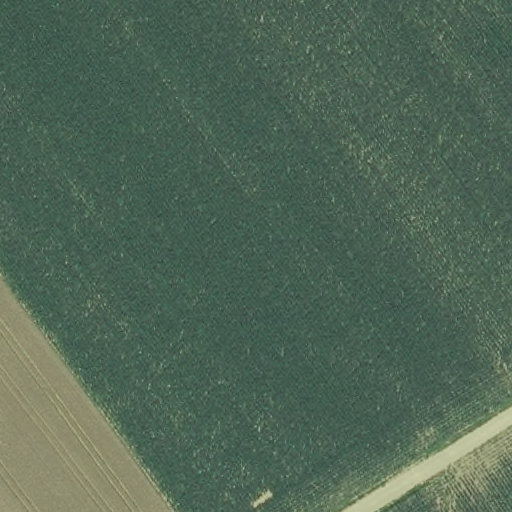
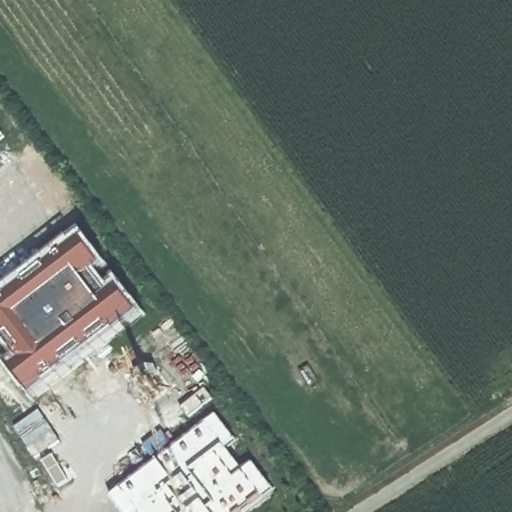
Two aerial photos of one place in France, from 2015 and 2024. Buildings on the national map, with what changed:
new [(10,139),(0,146),(0,127),(10,139)]
new [(111,270),(102,279),(112,291),(121,284),(147,318),(33,402),(10,372),(25,362),(10,343),(0,349),(0,304),(85,238),(111,270)]
new [(39,410),(62,443),(36,460),(13,428),(39,410)]
new [(241,443),(232,453),(247,473),(257,466),(277,492),(249,512),(122,512),(112,498),(219,418),(241,443)]

